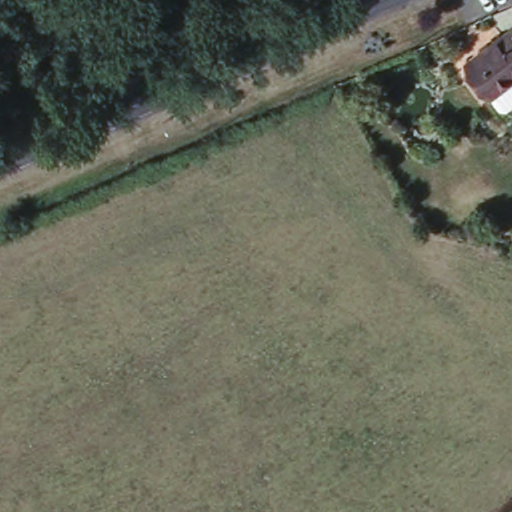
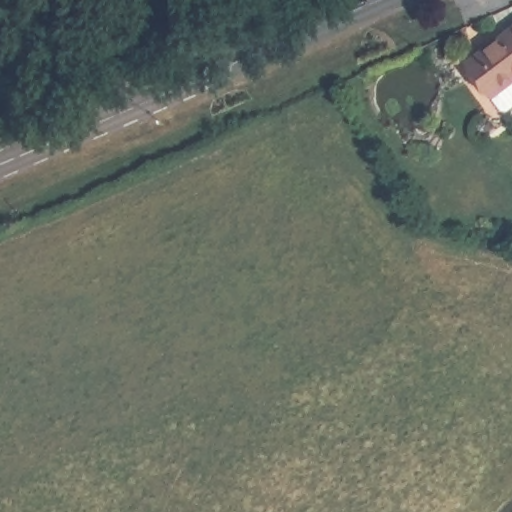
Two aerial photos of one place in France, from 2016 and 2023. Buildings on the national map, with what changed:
unchanged [(461,64),(512,26),(512,76),(488,96),(461,64)]

